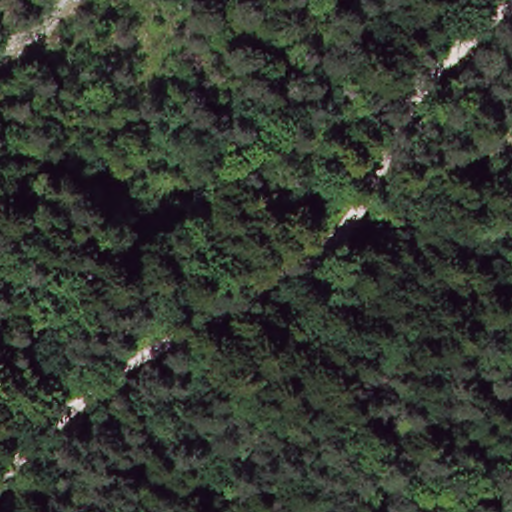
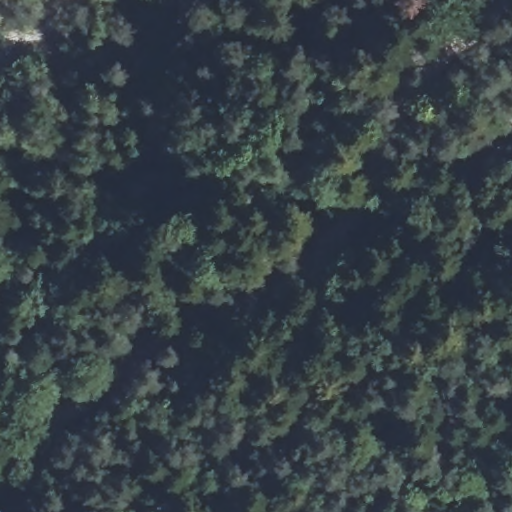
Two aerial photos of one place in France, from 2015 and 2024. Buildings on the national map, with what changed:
[]

